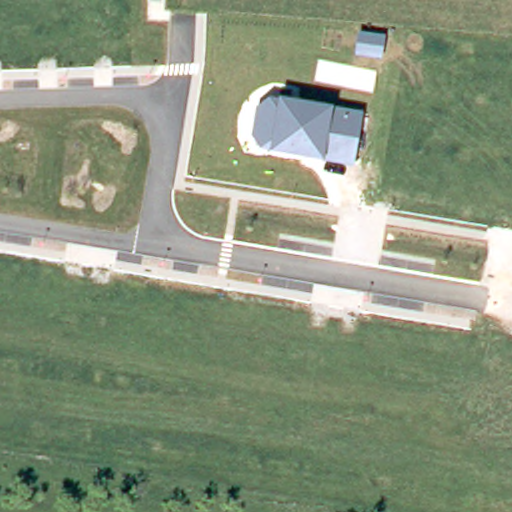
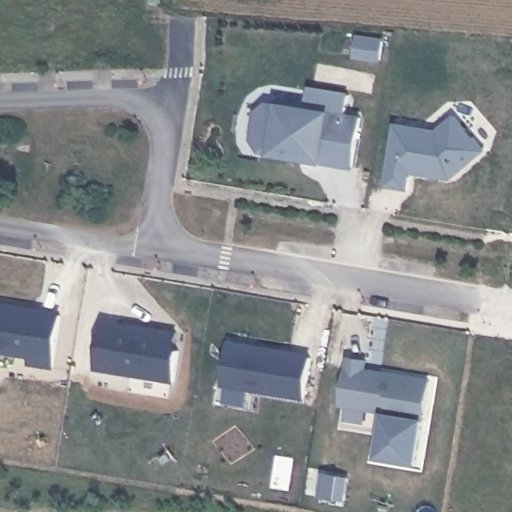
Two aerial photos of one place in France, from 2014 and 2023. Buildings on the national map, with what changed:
unchanged [(353,167),(261,151),(252,134),(259,107),(271,101),(363,116),(353,167)]
new [(397,125),(439,131),(457,116),(485,151),(469,165),(467,161),(461,166),(464,170),(452,180),(412,173),(409,190),(387,187),(397,125)]
new [(0,302),(62,312),(53,369),(27,365),(30,357),(0,353),(0,302)]
new [(175,347),(179,348),(172,383),(95,370),(102,320),(177,331),(175,347)]
new [(222,386),(230,340),(312,353),(305,400),(222,386)]
new [(368,368),(432,378),(425,423),(385,418),(386,413),(340,405),(348,355),(370,358),(368,368)]
new [(425,423),(418,465),(380,459),(385,418),(425,423)]
new [(340,477),(348,478),(348,485),(345,502),(320,498),(323,474),(340,477)]

